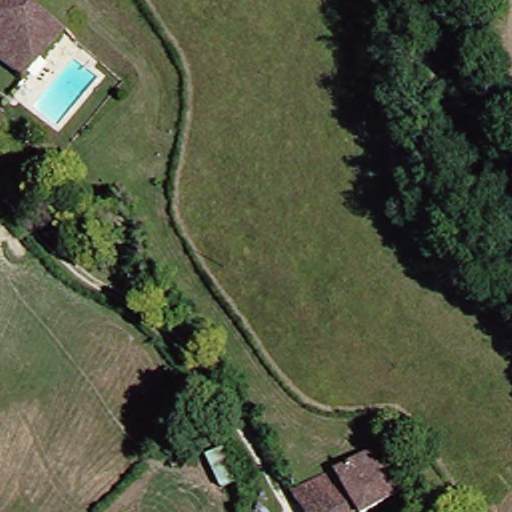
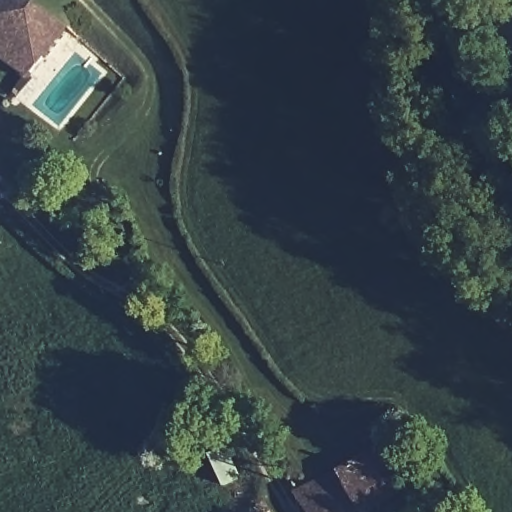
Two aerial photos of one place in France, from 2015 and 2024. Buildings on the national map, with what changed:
unchanged [(31,0),(67,30),(25,81),(0,60),(0,1),(1,0),(31,0)]
unchanged [(0,130),(0,108),(10,116),(0,130)]
unchanged [(205,458),(223,449),(240,478),(220,490),(205,458)]
unchanged [(295,498),(374,451),(401,497),(378,512),(304,512),(295,498)]

